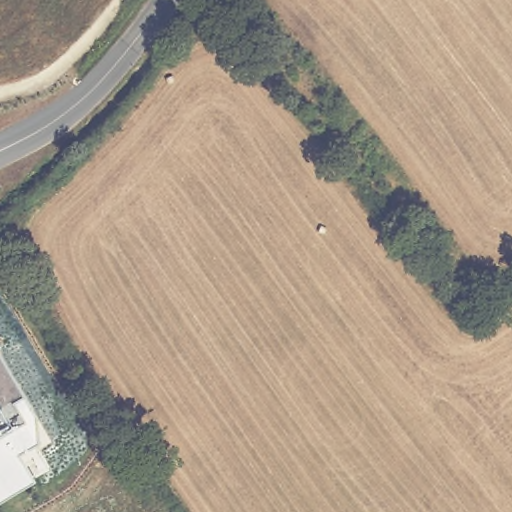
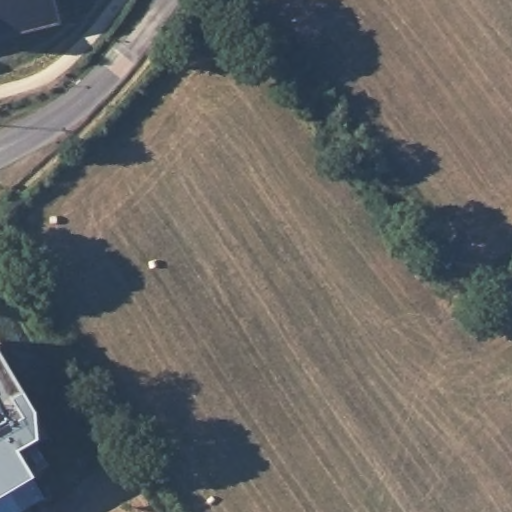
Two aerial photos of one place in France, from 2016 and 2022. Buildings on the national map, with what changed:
new [(53,0),(58,22),(0,38),(0,0),(53,0)]
unchanged [(34,408),(38,438),(47,465),(0,496),(0,355),(34,408)]

